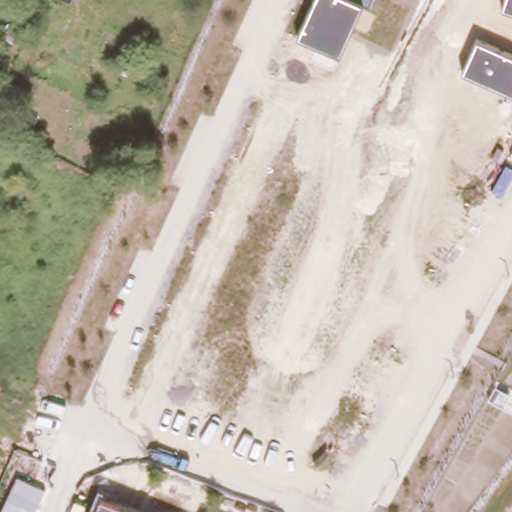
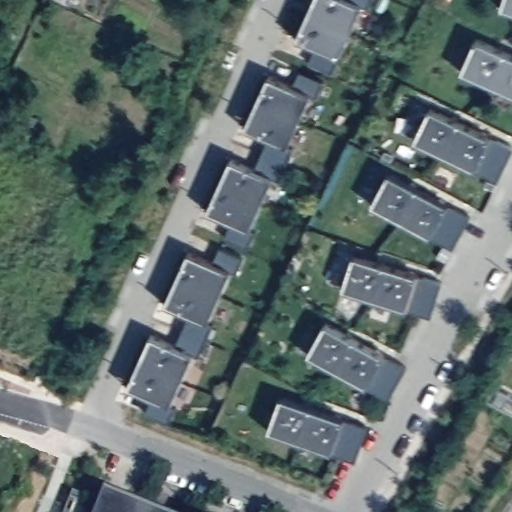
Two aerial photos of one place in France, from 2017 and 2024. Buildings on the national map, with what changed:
unchanged [(299,38),(316,0),(373,0),(369,7),(363,5),(341,56),(299,38)]
unchanged [(512,10),(503,7),(505,0),(512,0),(512,10)]
unchanged [(512,54),(512,93),(464,71),(478,40),(512,54)]
new [(309,95),(286,146),(243,128),(266,75),(309,95)]
new [(512,153),(499,181),(416,140),(431,107),(512,146),(512,153)]
new [(271,178),(248,229),(206,210),(228,158),(271,178)]
new [(471,216),(453,249),(373,205),(390,173),(471,216)]
new [(228,270),(204,321),(163,302),(186,250),(228,270)]
new [(443,282),(432,318),(344,290),(355,255),(443,282)]
new [(408,367),(391,400),(309,355),(326,323),(408,367)]
new [(189,354),(166,405),(124,386),(146,334),(189,354)]
new [(369,427),(356,462),(271,430),(282,395),(369,427)]
unchanged [(96,512),(102,496),(143,512),(96,512)]

